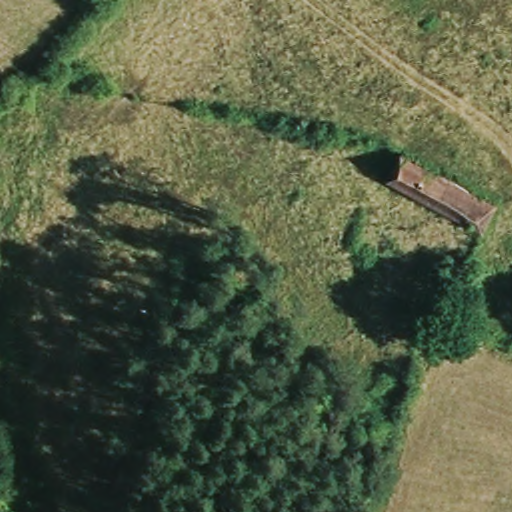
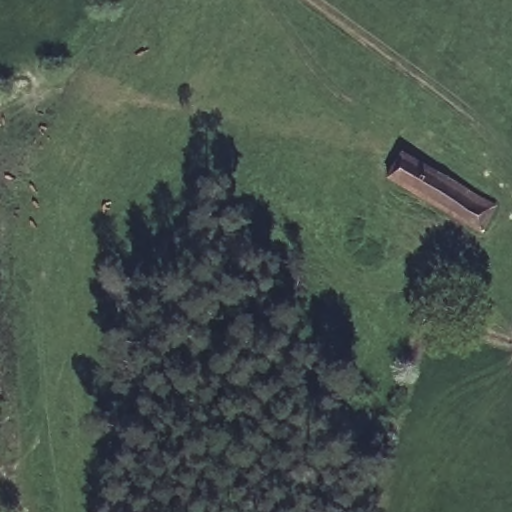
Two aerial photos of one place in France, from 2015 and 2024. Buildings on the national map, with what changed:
unchanged [(403,153),(497,206),(481,233),(389,179),(403,153)]

